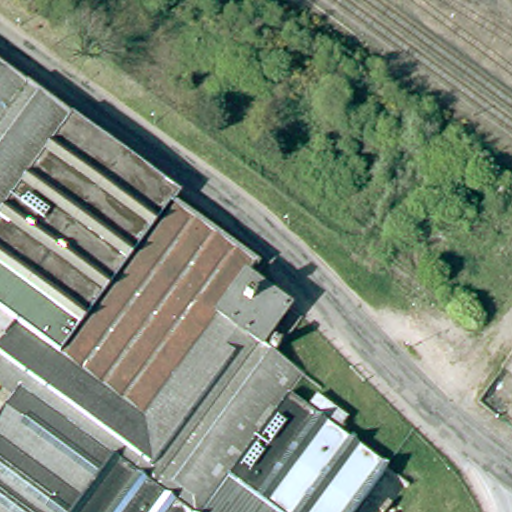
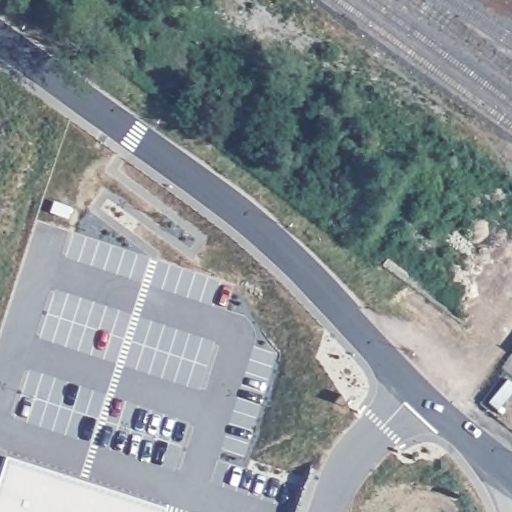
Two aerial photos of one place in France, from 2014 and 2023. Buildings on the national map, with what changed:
demolished [(184,199),(178,206),(260,267),(249,282),(306,324),(279,360),(307,381),(292,401),(389,474),(362,512),(0,512),(0,426),(27,389),(0,369),(0,65),(178,195),(184,199)]
new [(56,204),(74,210),(70,221),(53,214),(56,204)]
demolished [(342,434),(313,412),(319,402),(349,424),(342,434)]
new [(0,512),(0,470),(5,454),(164,506),(162,512),(0,512)]

